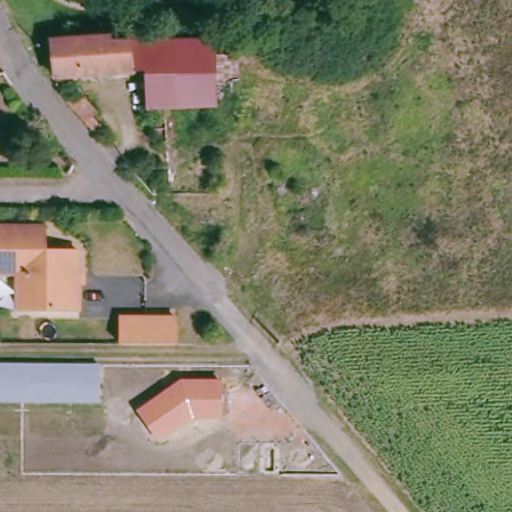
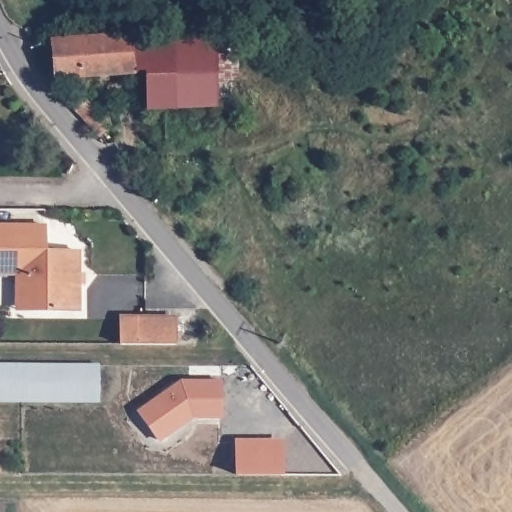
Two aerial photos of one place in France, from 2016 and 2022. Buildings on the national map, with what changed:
unchanged [(118,40),(119,42),(218,41),(218,53),(238,57),(243,112),(147,115),(144,78),(63,85),(53,82),(50,45),(118,40)]
unchanged [(74,106),(83,101),(99,120),(97,125),(110,140),(106,145),(74,106)]
unchanged [(0,231),(44,231),(44,257),(79,257),(78,316),(35,316),(17,316),(18,280),(0,280),(0,231)]
unchanged [(120,319),(176,320),(176,339),(120,338),(120,319)]
unchanged [(98,402),(0,401),(0,362),(99,363),(98,402)]
unchanged [(181,378),(223,381),(223,419),(194,418),(159,442),(136,410),(181,378)]
new [(234,473),(233,441),(284,441),(284,475),(234,473)]

